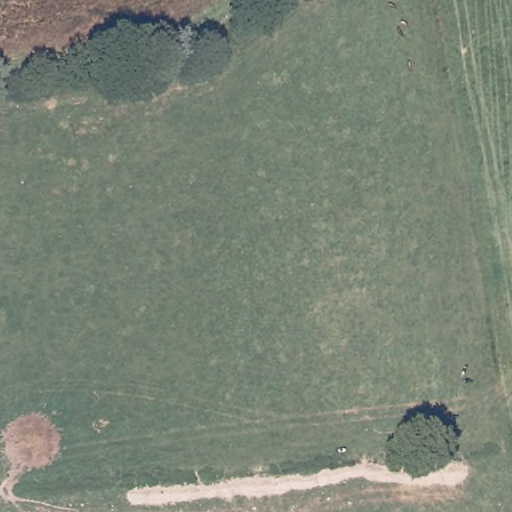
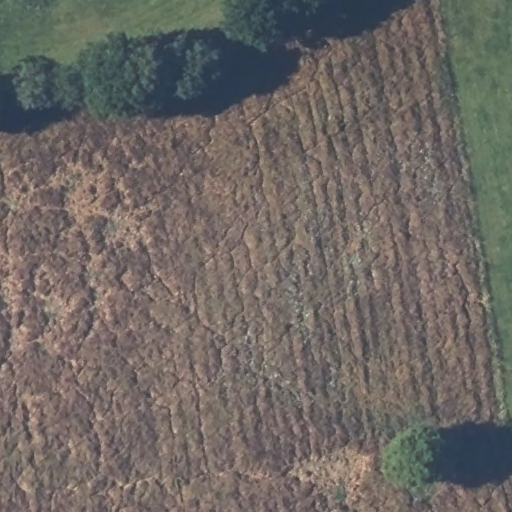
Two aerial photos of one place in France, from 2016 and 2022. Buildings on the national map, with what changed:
[]

